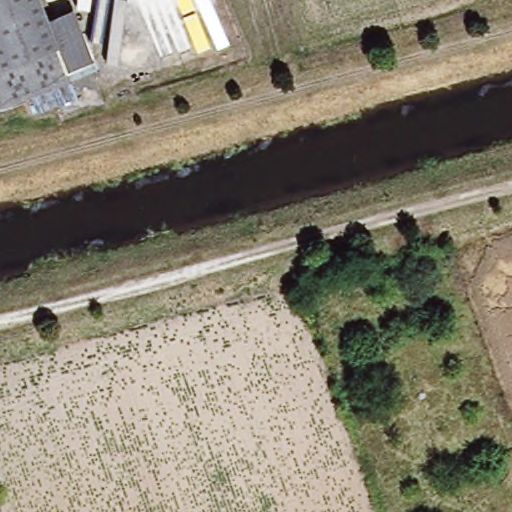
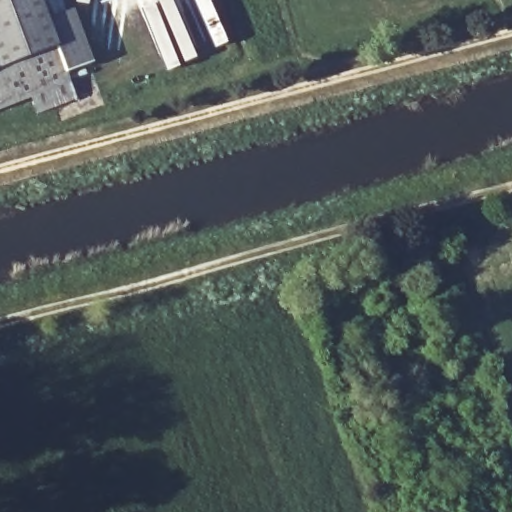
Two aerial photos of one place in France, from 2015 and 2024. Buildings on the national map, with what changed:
unchanged [(75,10),(93,61),(66,70),(74,104),(38,117),(33,100),(0,113),(0,0),(39,0),(46,22),(75,10)]

